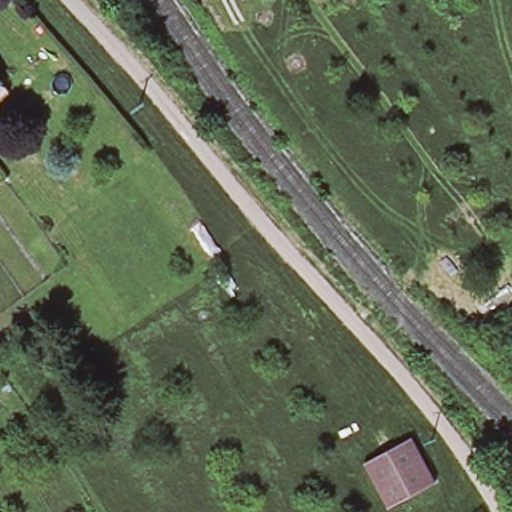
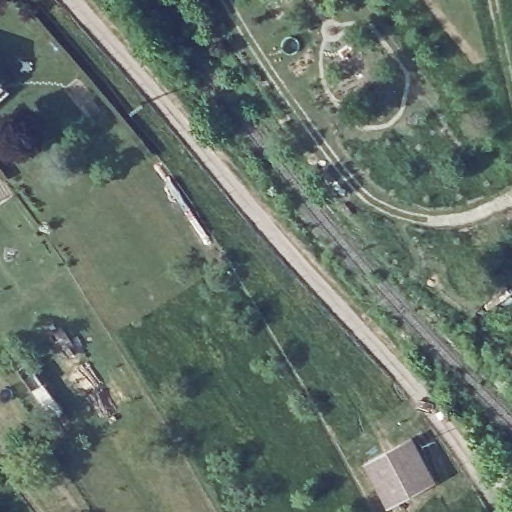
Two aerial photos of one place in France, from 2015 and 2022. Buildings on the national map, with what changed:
unchanged [(1,81),(0,82),(0,80),(1,81)]
unchanged [(411,439),(436,485),(387,511),(365,464),(411,439)]

